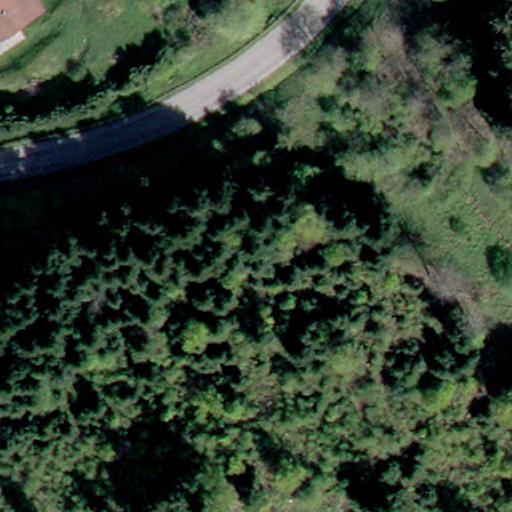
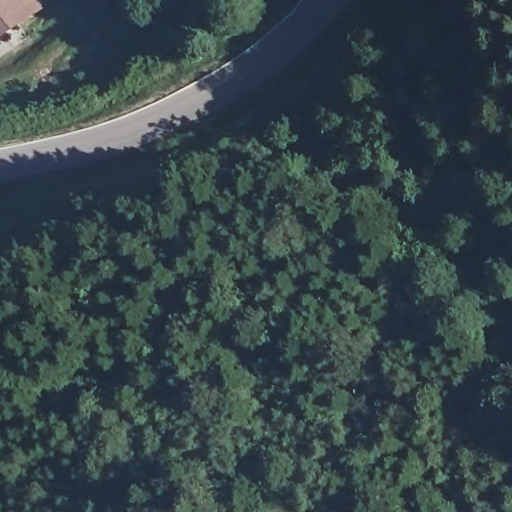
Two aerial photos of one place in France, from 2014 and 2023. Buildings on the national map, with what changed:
unchanged [(0,48),(0,49),(0,0),(48,0),(56,11),(0,48)]

